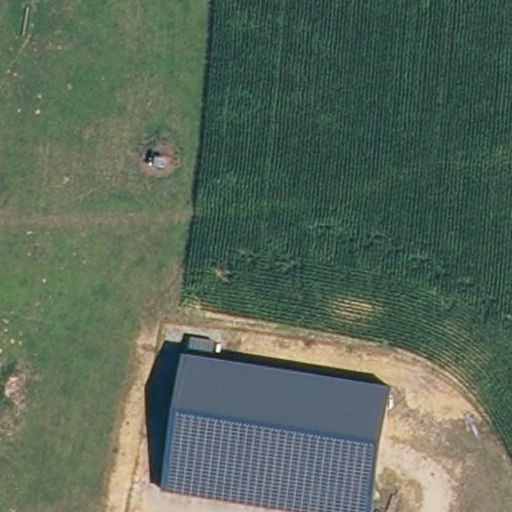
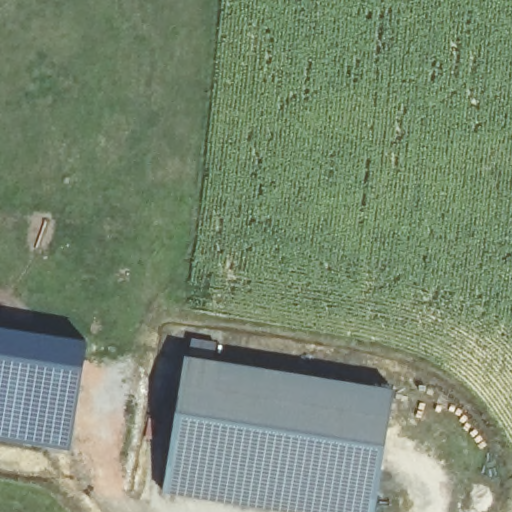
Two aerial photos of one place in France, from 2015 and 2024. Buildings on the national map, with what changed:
new [(0,326),(87,340),(70,449),(0,439),(0,326)]
unchanged [(215,357),(190,353),(192,339),(217,343),(215,357)]
unchanged [(395,388),(378,497),(300,484),(168,462),(186,354),(327,377),(395,388)]
unchanged [(378,497),(376,512),(296,512),(292,511),(164,490),(168,462),(300,484),(378,497)]

